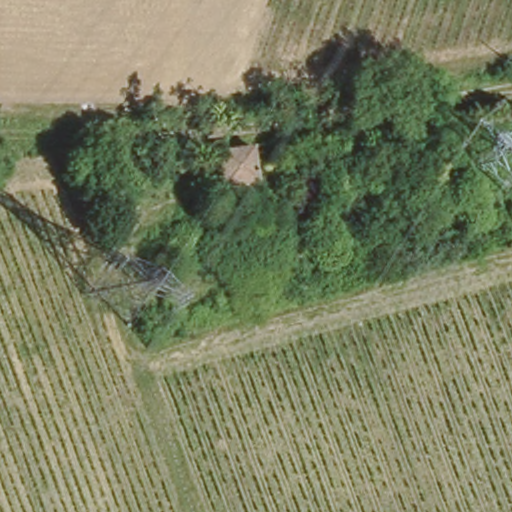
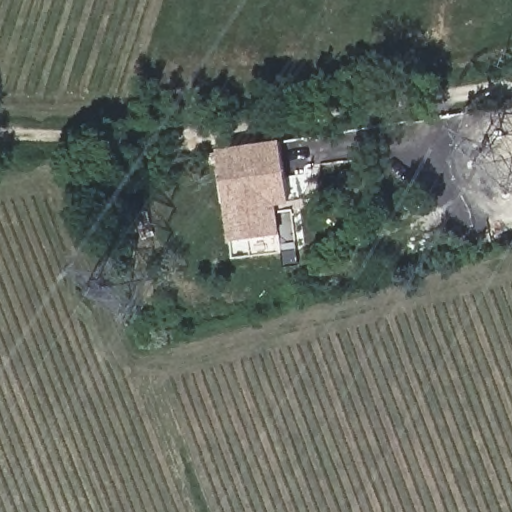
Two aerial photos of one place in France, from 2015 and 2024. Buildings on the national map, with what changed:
new [(281,140),(289,205),(277,206),(281,234),(228,241),(215,149),(281,140)]
demolished [(263,194),(225,201),(215,150),(255,145),(263,194)]

